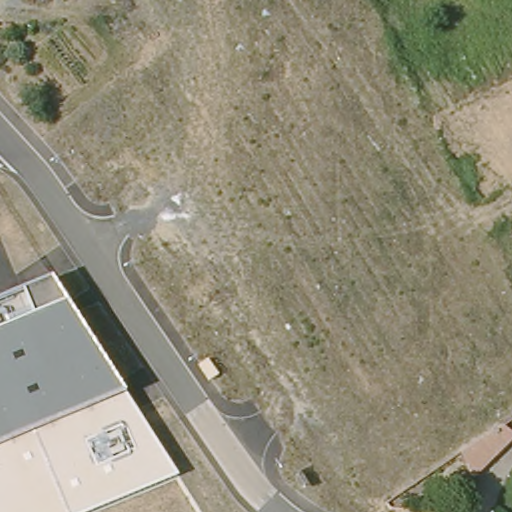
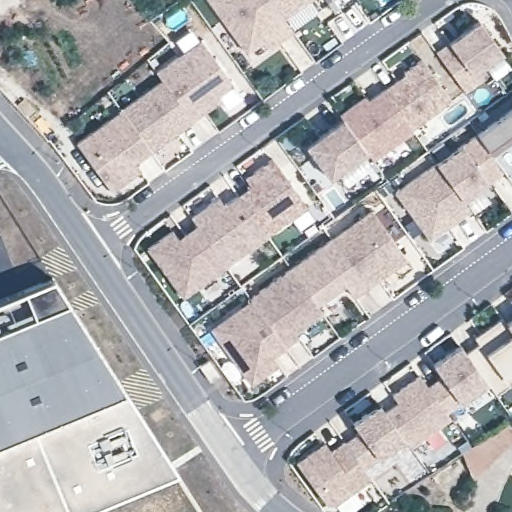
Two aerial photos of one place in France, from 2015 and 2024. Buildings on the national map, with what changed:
new [(259,41),(243,52),(205,0),(267,0),(281,19),(289,31),(276,41),(265,48),(259,41)]
new [(281,19),(267,0),(306,0),(281,19)]
new [(475,21),(499,53),(469,74),(476,82),(462,92),(433,52),(475,21)]
new [(218,101),(203,112),(189,121),(159,80),(153,72),(198,40),(230,84),(240,98),(223,109),(218,101)]
new [(402,73),(399,71),(418,58),(448,99),(409,128),(379,89),(402,73)]
new [(159,80),(189,121),(148,150),(118,109),(159,80)]
unchanged [(361,96),(365,100),(379,89),(409,128),(409,130),(369,159),(363,151),(339,119),(336,114),(361,96)]
new [(508,180),(500,169),(473,133),(512,104),(512,177),(508,180)]
new [(133,162),(138,170),(109,192),(73,143),(118,109),(148,150),(133,162)]
new [(339,119),(363,151),(326,177),(303,145),(339,119)]
new [(473,133),(500,169),(459,199),(433,162),(473,133)]
unchanged [(248,186),(243,178),(269,158),(305,206),(264,236),(235,196),(248,186)]
new [(427,239),(393,192),(433,162),(459,199),(467,209),(453,220),(447,224),(427,239)]
new [(216,197),(222,205),(235,196),(264,236),(271,244),(231,273),(224,265),(195,225),(189,217),(216,197)]
new [(398,274),(392,266),(364,287),(329,239),(381,201),(416,248),(422,257),(398,274)]
new [(176,239),(181,235),(195,225),(224,265),(181,297),(146,248),(171,230),(176,239)]
new [(328,238),(329,239),(364,287),(351,295),(343,283),(314,304),(288,268),(328,238)]
new [(288,268),(314,304),(320,312),(293,332),(296,336),(283,345),(249,300),(248,297),(288,268)]
unchanged [(0,512),(0,292),(50,271),(125,393),(181,475),(90,512),(0,512)]
new [(268,371),(250,383),(210,329),(249,300),(283,345),(284,346),(271,355),(274,359),(277,364),(268,371)]
new [(504,322),(512,315),(512,333),(504,322)]
new [(478,341),(473,335),(499,316),(504,322),(512,333),(512,370),(503,377),(508,383),(494,393),(486,382),(463,351),(478,341)]
new [(439,375),(431,363),(458,343),(463,351),(486,382),(444,411),(426,385),(439,375)]
new [(396,400),(391,393),(417,373),(426,385),(444,411),(449,417),(409,446),(403,438),(383,410),(396,400)]
new [(358,430),(351,421),(377,402),(383,410),(403,438),(362,467),(343,441),(358,430)]
unchanged [(469,484),(466,457),(512,427),(512,457),(469,484)]
new [(323,441),(329,449),(342,440),(343,441),(362,467),(369,477),(334,503),(323,500),(295,462),(323,441)]

